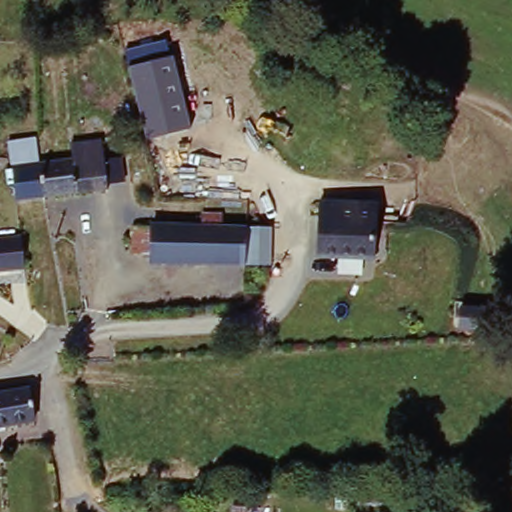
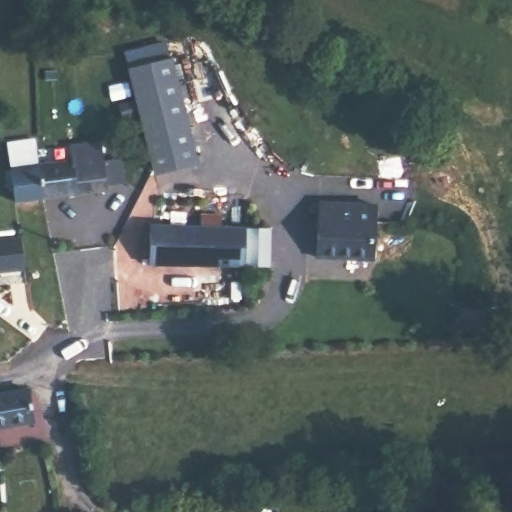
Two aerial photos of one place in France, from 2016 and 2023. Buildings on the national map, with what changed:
unchanged [(166,40),(170,57),(175,56),(192,129),(146,141),(125,50),(166,40)]
unchanged [(36,138),(41,162),(71,157),(69,143),(100,139),(104,163),(121,160),(124,182),(106,184),(107,191),(15,204),(6,143),(36,138)]
unchanged [(317,200),(377,204),(374,261),(314,256),(317,200)]
unchanged [(134,223),(153,224),(198,225),(199,210),(220,212),(219,226),(217,267),(152,264),(152,253),(134,252),(134,223)]
unchanged [(246,269),(217,267),(219,226),(246,226),(246,269)]
unchanged [(273,226),(272,266),(246,266),(246,226),(273,226)]
unchanged [(26,277),(0,277),(0,245),(25,245),(26,277)]
unchanged [(0,394),(33,387),(36,419),(0,425),(0,394)]

